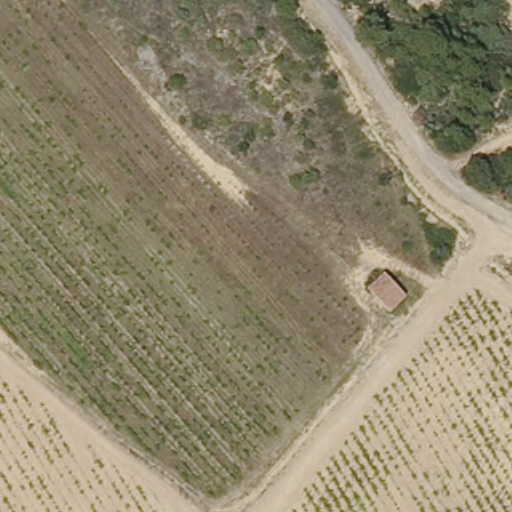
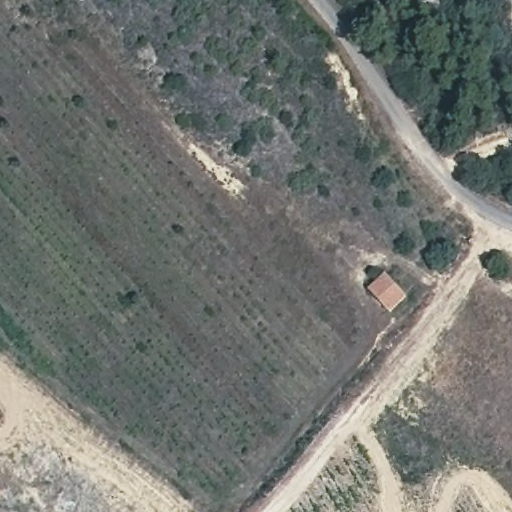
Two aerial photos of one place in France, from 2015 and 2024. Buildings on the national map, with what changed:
unchanged [(404,298),(388,314),(368,293),(384,277),(404,298)]

